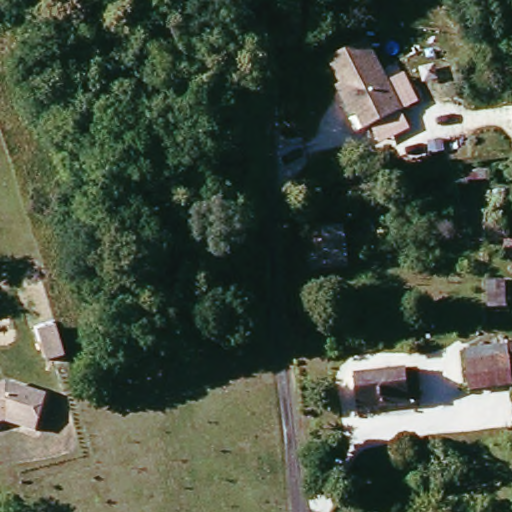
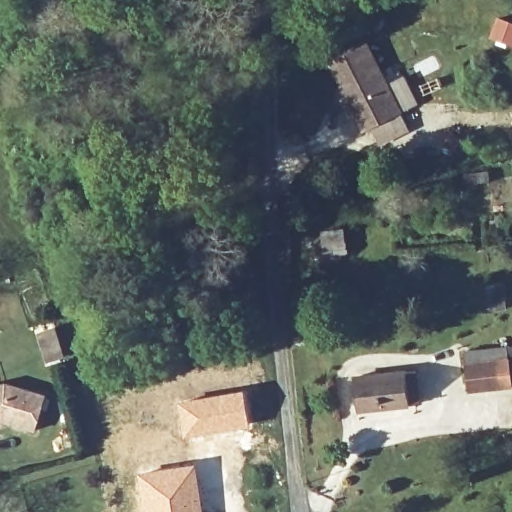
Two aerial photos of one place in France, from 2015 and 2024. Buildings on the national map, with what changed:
unchanged [(356,114),(351,116),(344,99),(345,91),(330,59),(368,42),(389,87),(408,77),(419,104),(400,114),(410,132),(380,144),(373,127),(363,129),(356,114)]
unchanged [(322,249),(321,231),(341,227),(342,262),(305,266),(304,252),(322,249)]
new [(57,324),(67,355),(50,360),(40,329),(57,324)]
unchanged [(472,387),(474,347),(504,350),(503,365),(512,366),(512,384),(512,390),(472,387)]
unchanged [(413,407),(363,407),(363,376),(413,376),(413,407)]
unchanged [(46,394),(36,429),(4,421),(0,422),(0,384),(5,382),(46,394)]
new [(244,389),(251,426),(183,437),(177,400),(244,389)]
new [(197,462),(203,512),(141,512),(135,472),(197,462)]

